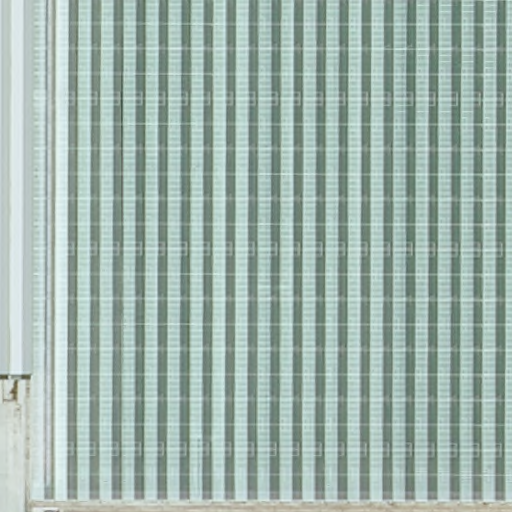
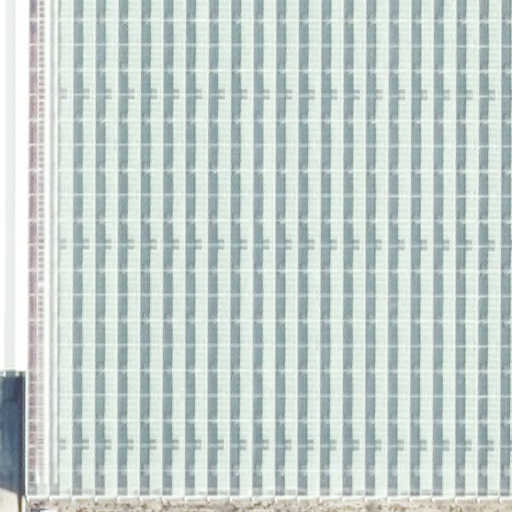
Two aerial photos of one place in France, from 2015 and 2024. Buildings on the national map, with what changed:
unchanged [(30,487),(30,380),(0,379),(0,0),(512,0),(512,484),(30,487)]

